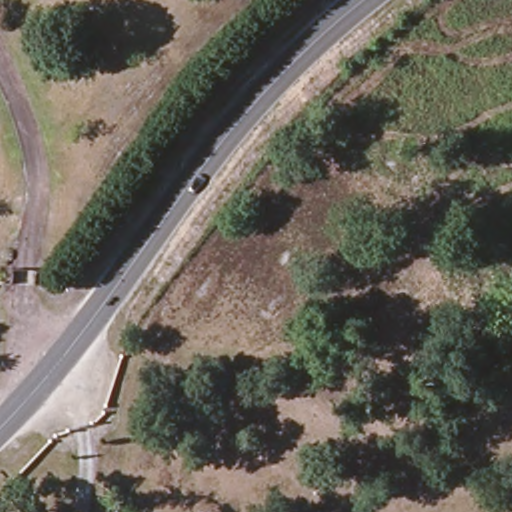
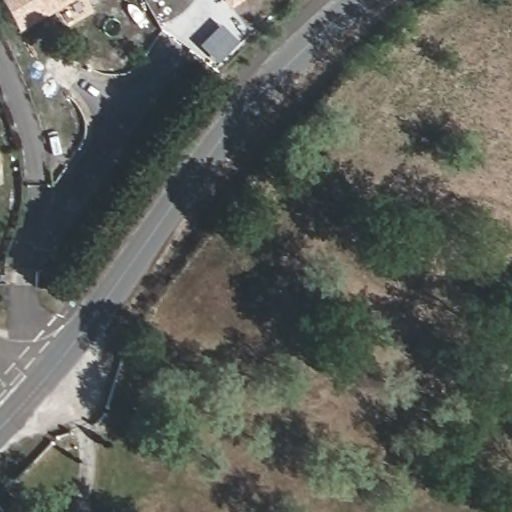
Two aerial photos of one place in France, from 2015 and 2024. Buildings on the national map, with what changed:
new [(1,0),(72,0),(18,30),(1,0)]
new [(240,0),(227,9),(222,0),(240,0)]
new [(216,61),(199,44),(220,24),(236,41),(216,61)]
new [(0,154),(1,156),(0,160),(0,154)]

